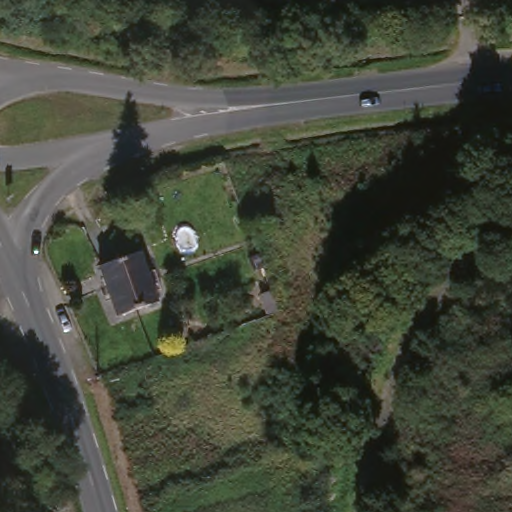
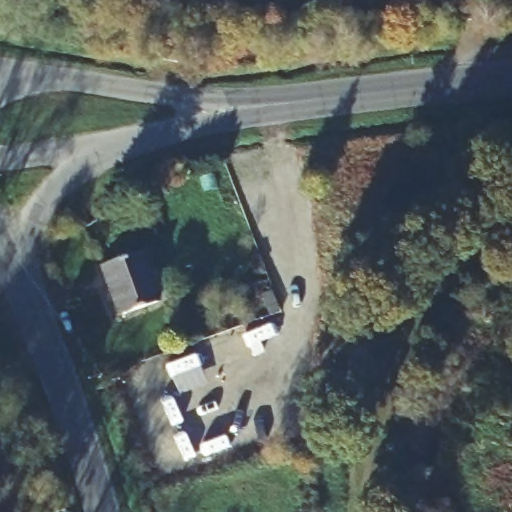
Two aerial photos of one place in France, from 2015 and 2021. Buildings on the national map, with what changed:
unchanged [(144,273),(152,270),(159,290),(151,292),(155,302),(118,315),(111,292),(105,294),(96,268),(138,254),(144,273)]
unchanged [(263,295),(274,290),(282,312),(271,315),(263,295)]

